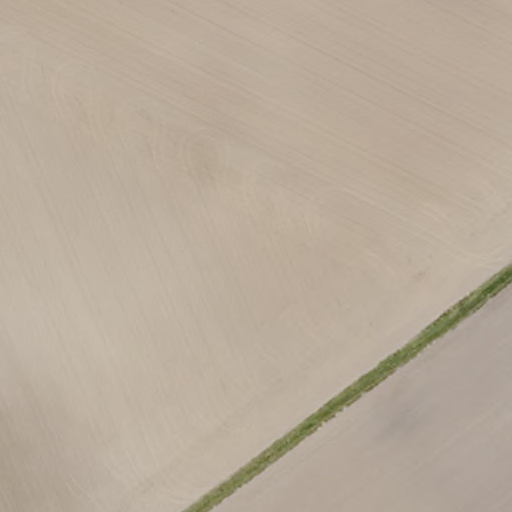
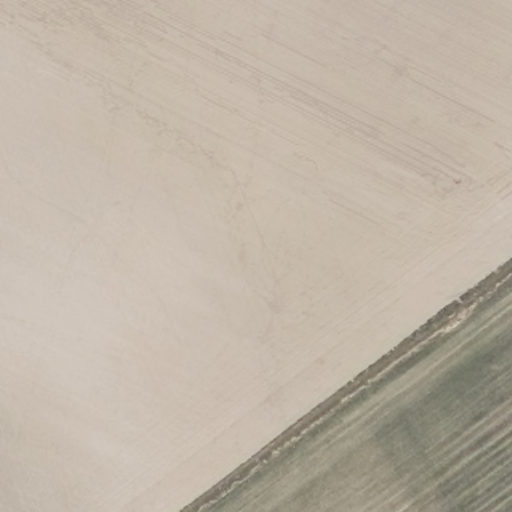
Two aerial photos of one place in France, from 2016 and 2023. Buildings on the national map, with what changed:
[]

